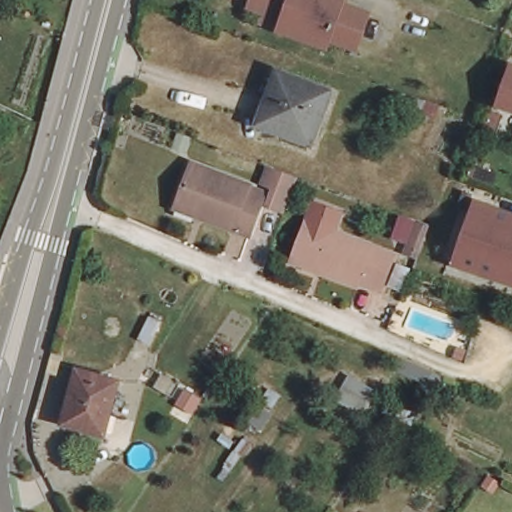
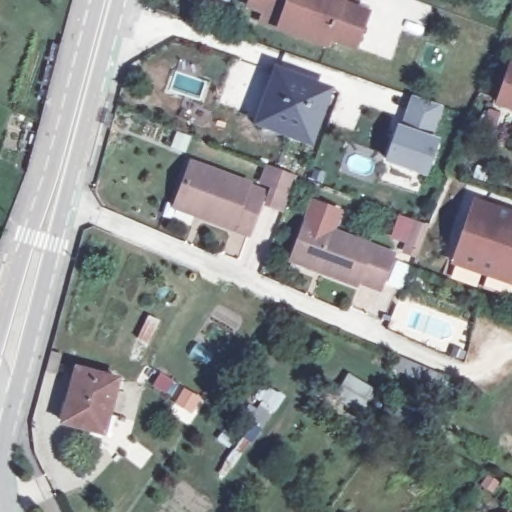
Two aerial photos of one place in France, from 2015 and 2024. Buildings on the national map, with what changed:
unchanged [(266,11),(251,5),(253,0),(345,0),(343,5),(369,15),(357,49),(330,39),(327,46),(281,29),(262,22),(266,11)]
unchanged [(500,105),(512,69),(512,109),(500,105)]
unchanged [(258,120),(276,72),(326,89),(307,139),(279,129),(262,129),(258,120)]
new [(414,98),(440,107),(428,141),(437,144),(426,176),(387,163),(397,131),(402,132),(414,98)]
unchanged [(180,198),(194,161),(251,184),(265,189),(263,194),(249,232),(204,214),(177,204),(180,198)]
unchanged [(284,211),(267,206),(275,187),(265,183),(272,164),(282,168),(299,175),(284,211)]
unchanged [(304,254),(316,222),(324,201),(349,211),(341,232),(402,257),(389,289),(366,280),(364,285),(330,272),(301,260),(304,254)]
unchanged [(488,274),(457,263),(477,203),(512,215),(512,282),(488,274)]
unchanged [(427,260),(417,256),(425,233),(436,237),(427,260)]
unchanged [(147,347),(158,324),(170,330),(158,352),(147,347)]
unchanged [(445,397),(431,391),(399,377),(403,366),(436,381),(450,387),(445,397)]
unchanged [(86,429),(58,420),(74,369),(114,381),(102,416),(97,433),(86,429)]

